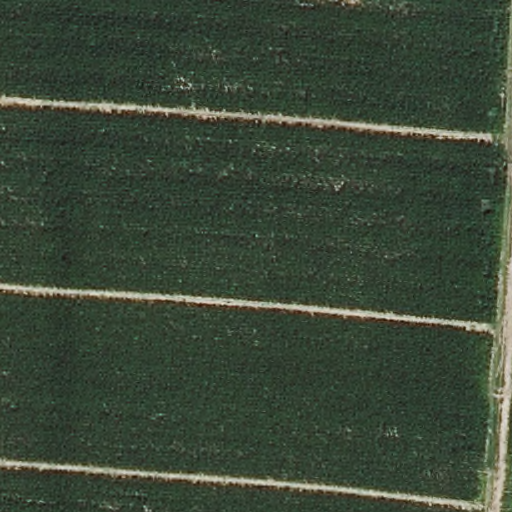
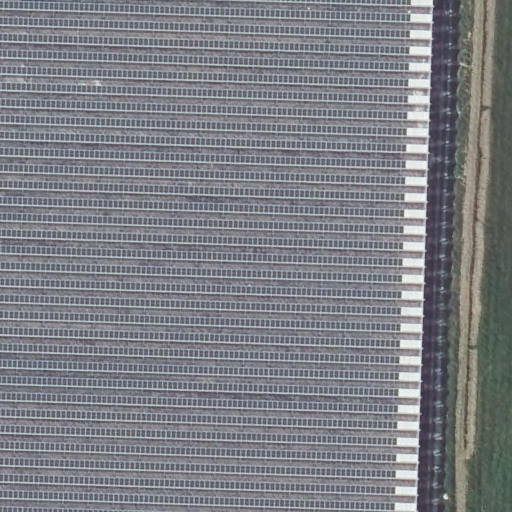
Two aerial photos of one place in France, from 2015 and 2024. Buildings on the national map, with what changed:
new [(415,512),(0,512),(0,0),(431,0),(415,512)]

